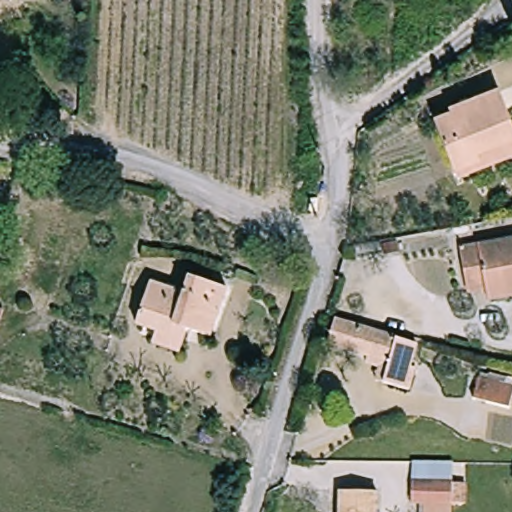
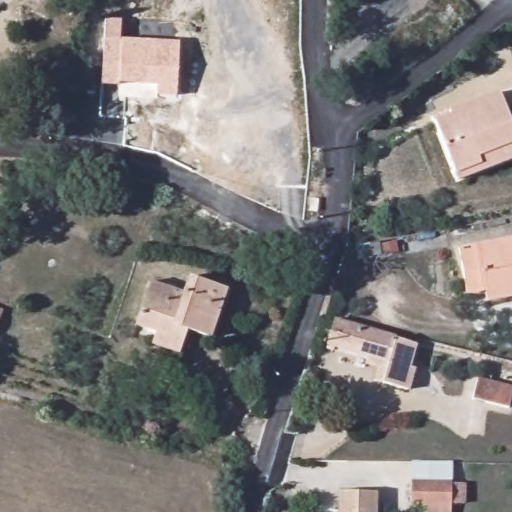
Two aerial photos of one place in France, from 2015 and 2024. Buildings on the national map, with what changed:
new [(121,20),(120,39),(178,42),(175,96),(156,96),(156,85),(120,83),(120,86),(101,85),(103,41),(105,21),(121,20)]
unchanged [(512,131),(512,166),(456,186),(435,129),(450,122),(447,115),(498,97),(512,131)]
unchanged [(467,292),(458,251),(512,241),(512,299),(492,304),(489,288),(467,292)]
unchanged [(184,293),(191,275),(228,288),(211,337),(190,329),(181,352),(155,341),(160,329),(141,321),(154,283),(184,293)]
unchanged [(1,315),(0,317),(0,314),(1,315)]
unchanged [(385,387),(390,363),(329,345),(335,322),(416,345),(408,371),(415,373),(408,392),(395,389),(385,387)]
unchanged [(512,392),(510,401),(461,387),(467,365),(512,377),(512,392)]
unchanged [(455,462),(455,486),(466,487),(465,511),(455,511),(454,512),(425,512),(425,510),(412,510),(412,461),(455,462)]
unchanged [(340,494),(378,497),(377,512),(340,512),(340,494)]

